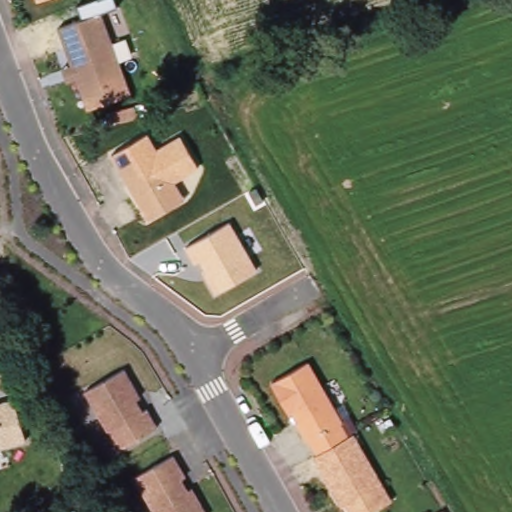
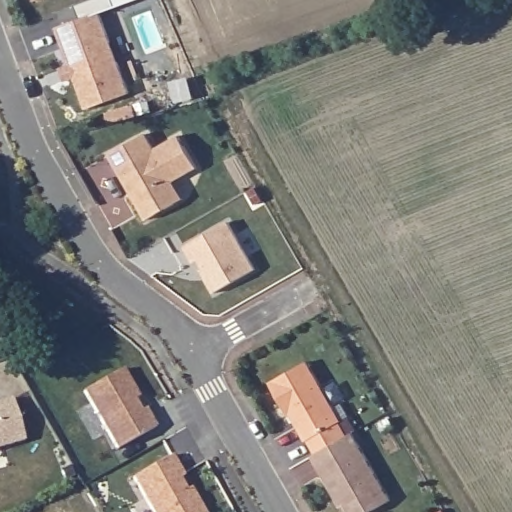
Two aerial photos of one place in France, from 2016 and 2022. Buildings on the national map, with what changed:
unchanged [(61,69),(71,66),(57,29),(100,12),(130,94),(88,110),(75,78),(66,81),(61,69)]
unchanged [(198,170),(175,182),(184,201),(149,221),(111,156),(148,135),(158,149),(180,138),(198,170)]
unchanged [(207,275),(209,273),(200,258),(195,261),(186,246),(229,220),(257,267),(216,291),(207,275)]
unchanged [(307,360),(340,419),(339,420),(347,434),(321,449),(315,452),(308,438),(306,439),(290,411),(288,412),(270,381),(307,360)]
unchanged [(146,407),(156,425),(117,447),(84,389),(123,367),(135,389),(139,395),(135,398),(141,409),(146,407)]
unchanged [(29,442),(0,450),(0,402),(15,398),(29,442)]
unchanged [(312,455),(315,452),(321,449),(347,434),(352,431),(391,498),(366,512),(350,512),(344,503),(340,505),(334,494),(312,455)]
unchanged [(173,453),(184,475),(180,477),(187,488),(191,486),(194,492),(206,512),(154,512),(134,476),(173,453)]

